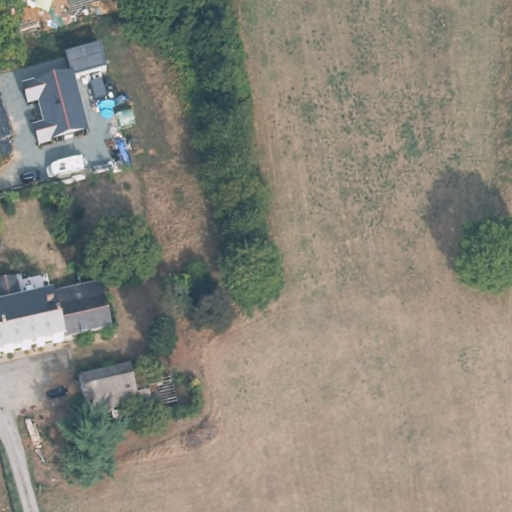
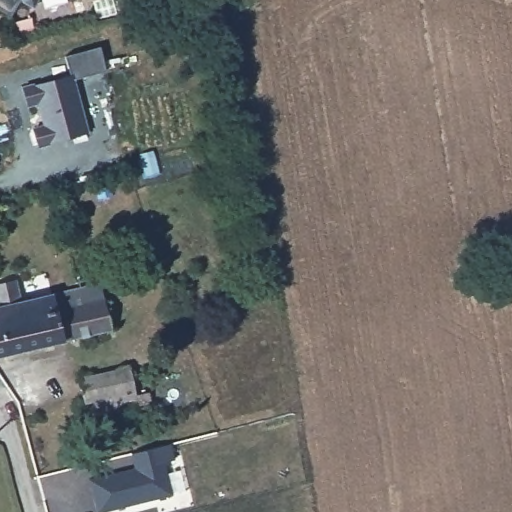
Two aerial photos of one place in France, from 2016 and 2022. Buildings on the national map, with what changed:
unchanged [(23,2),(11,15),(0,8),(0,0),(29,0),(23,2)]
unchanged [(43,124),(38,103),(27,105),(23,87),(69,76),(66,56),(100,47),(105,71),(76,77),(89,134),(37,147),(33,127),(43,124)]
unchanged [(17,280),(21,301),(80,288),(103,283),(113,328),(0,353),(0,283),(17,280)]
unchanged [(81,403),(73,403),(68,378),(112,367),(116,367),(130,364),(139,395),(142,406),(84,417),(81,403)]
new [(134,467),(130,453),(170,442),(175,459),(164,462),(172,495),(103,512),(97,512),(88,478),(134,467)]

